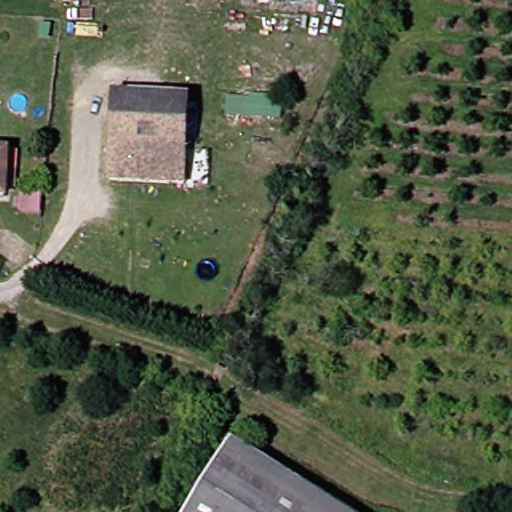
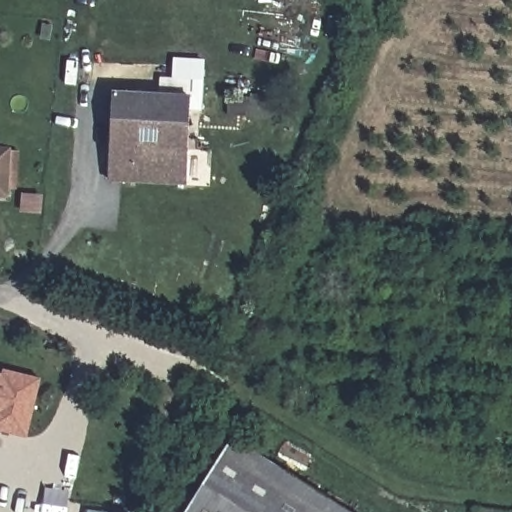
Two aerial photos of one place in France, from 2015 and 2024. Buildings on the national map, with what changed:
unchanged [(179,184),(104,180),(109,93),(133,95),(131,147),(181,150),(179,184)]
unchanged [(183,96),(181,150),(131,147),(133,95),(183,96)]
new [(2,375),(3,370),(39,377),(37,387),(26,435),(0,429),(0,374),(2,375)]
unchanged [(186,500),(225,440),(339,512),(180,512),(186,500)]

